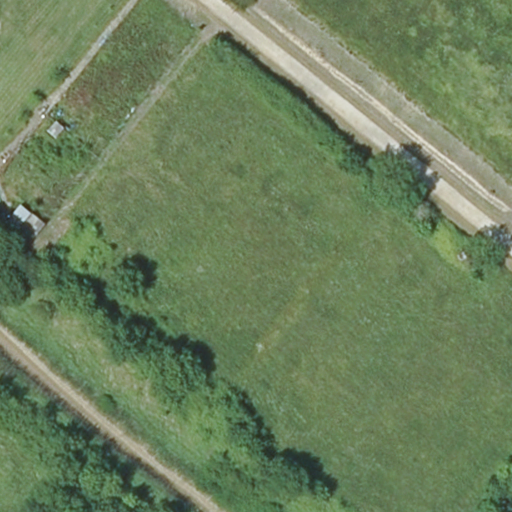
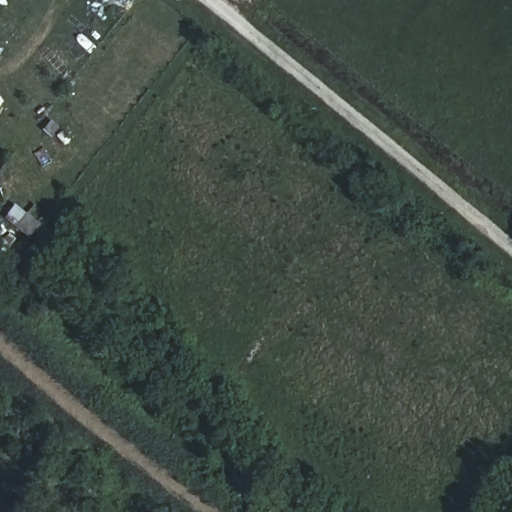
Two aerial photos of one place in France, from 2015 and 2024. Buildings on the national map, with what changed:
unchanged [(35,240),(9,219),(20,204),(45,224),(35,240)]

